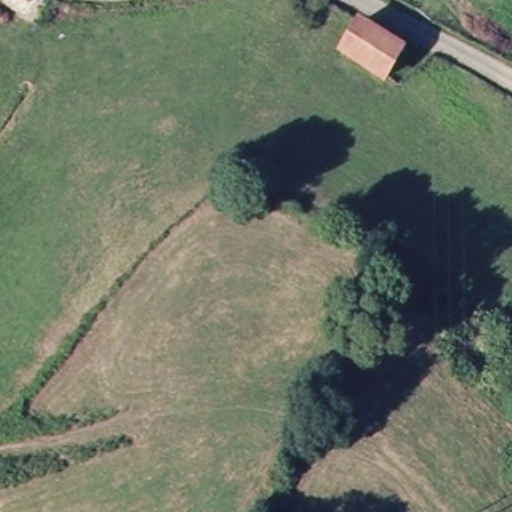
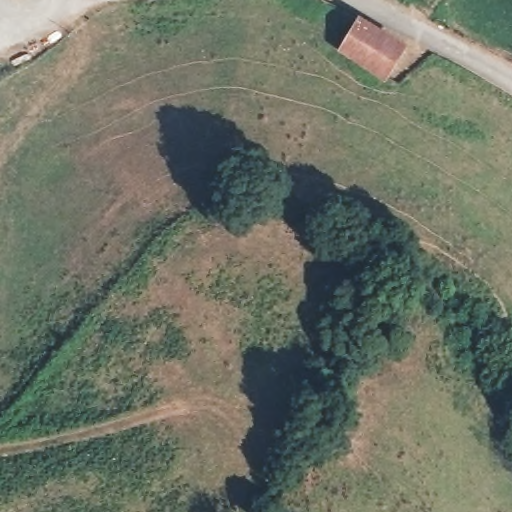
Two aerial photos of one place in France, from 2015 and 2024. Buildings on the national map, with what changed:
unchanged [(381,76),(344,53),(363,25),(401,48),(381,76)]

